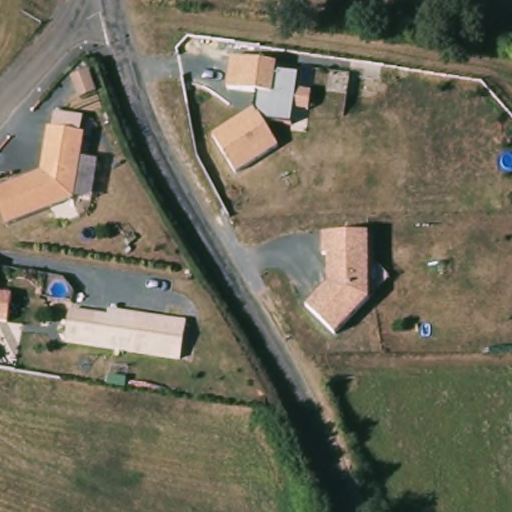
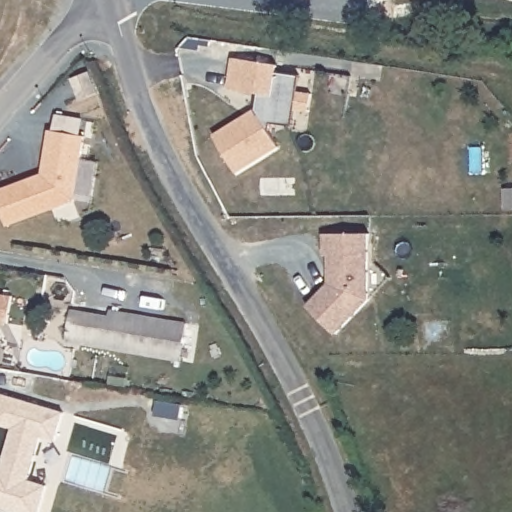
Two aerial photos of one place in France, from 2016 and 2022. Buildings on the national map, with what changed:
unchanged [(232,59),(277,65),(277,73),(299,76),(297,91),(312,94),(310,112),(294,111),(292,127),(271,125),(269,131),(278,146),(234,174),(212,136),(255,111),(256,96),(227,90),(232,59)]
unchanged [(10,226),(0,199),(0,191),(45,175),(53,130),(89,137),(77,201),(10,226)]
unchanged [(368,235),(369,300),(334,335),(306,306),(327,285),(326,256),(323,256),(322,235),(368,235)]
unchanged [(15,292),(10,319),(0,317),(0,289),(15,292)]
unchanged [(77,311),(77,317),(102,322),(103,316),(190,330),(185,367),(46,344),(54,307),(77,311)]
new [(11,430),(0,426),(0,394),(64,412),(56,442),(41,438),(28,480),(47,486),(40,512),(14,512),(0,508),(0,470),(11,430)]

